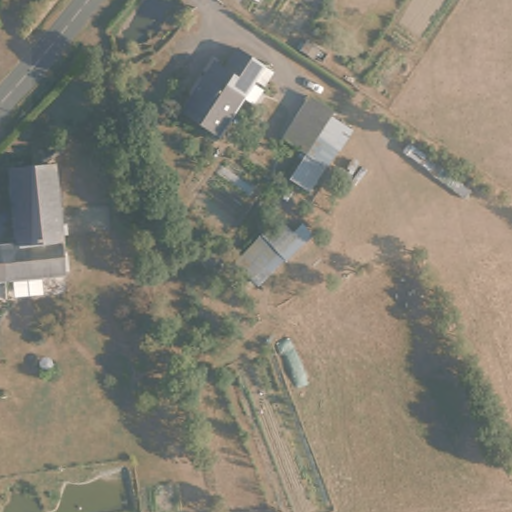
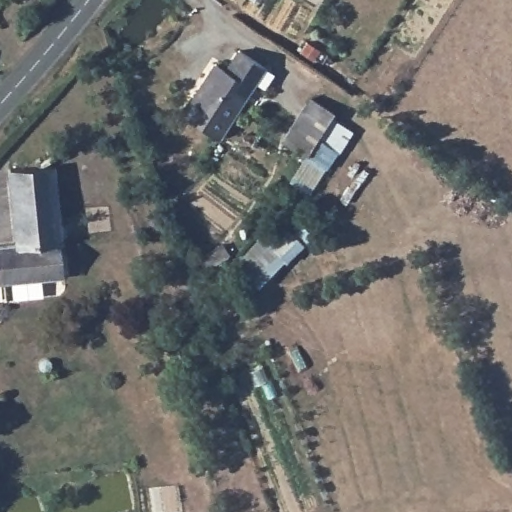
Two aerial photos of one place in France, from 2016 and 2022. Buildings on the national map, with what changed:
unchanged [(224,70),(237,50),(265,69),(217,141),(177,114),(211,63),(224,70)]
unchanged [(289,132),(317,90),(338,104),(333,111),(311,146),(289,132)]
unchanged [(333,111),(354,125),(330,163),(308,149),(311,146),(333,111)]
unchanged [(49,165),(62,274),(62,280),(35,283),(30,247),(7,249),(7,239),(0,184),(0,171),(49,165)]
unchanged [(266,216),(287,230),(255,281),(232,267),(266,216)]
unchanged [(0,287),(0,240),(7,239),(7,249),(30,247),(35,283),(0,287)]

